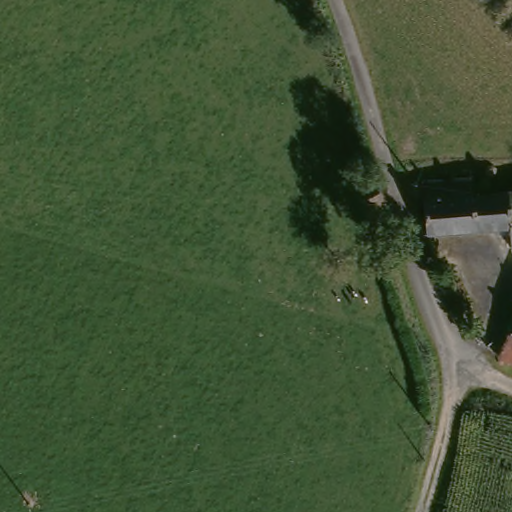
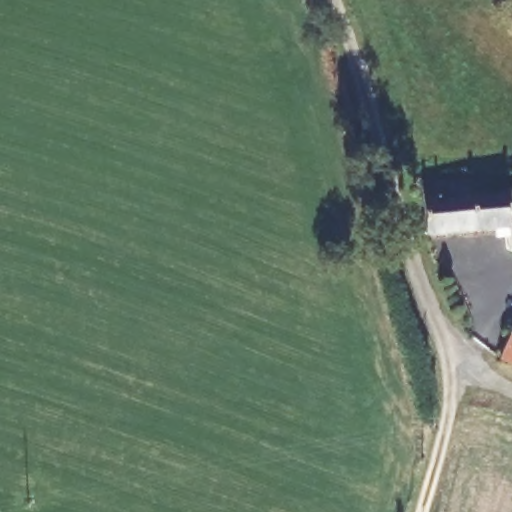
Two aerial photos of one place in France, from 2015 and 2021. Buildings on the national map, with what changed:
unchanged [(510,229),(427,235),(420,182),(472,179),(473,196),(512,194),(512,250),(510,229)]
unchanged [(503,359),(512,336),(512,362),(503,359)]

